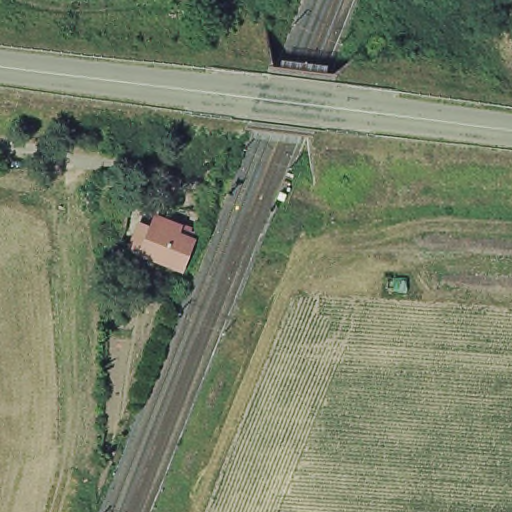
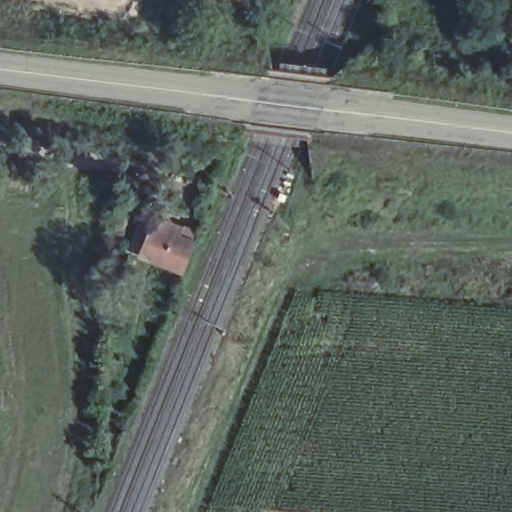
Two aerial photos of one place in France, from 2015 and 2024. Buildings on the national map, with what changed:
unchanged [(150,228),(152,221),(177,229),(175,238),(189,242),(180,266),(127,248),(135,223),(150,228)]

